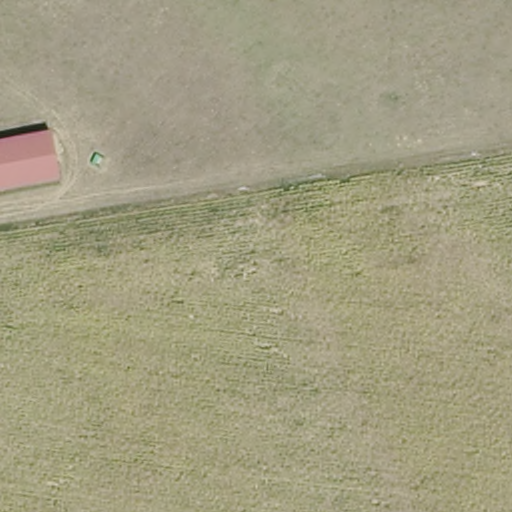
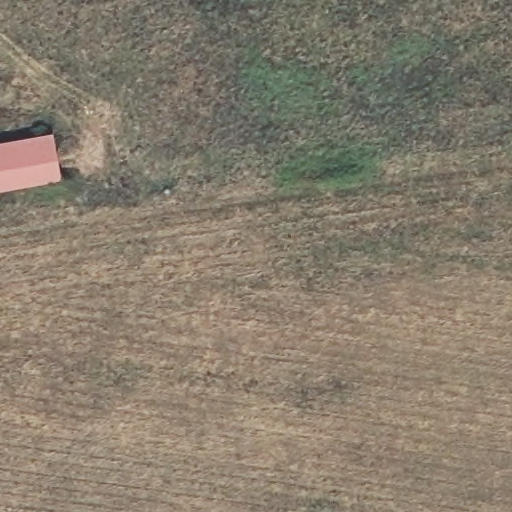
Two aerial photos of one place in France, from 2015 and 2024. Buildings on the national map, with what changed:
unchanged [(56,167),(0,184),(0,134),(42,121),(56,167)]

